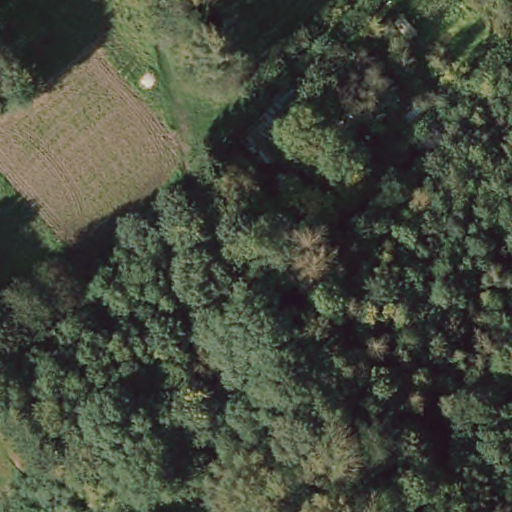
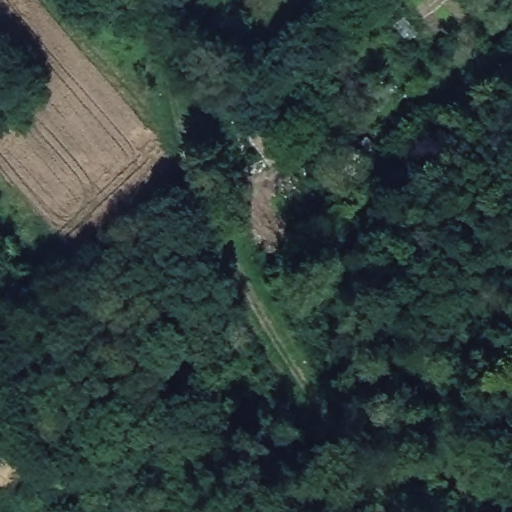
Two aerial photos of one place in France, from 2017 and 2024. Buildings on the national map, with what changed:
unchanged [(261,119),(294,92),(309,111),(276,138),(261,119)]

